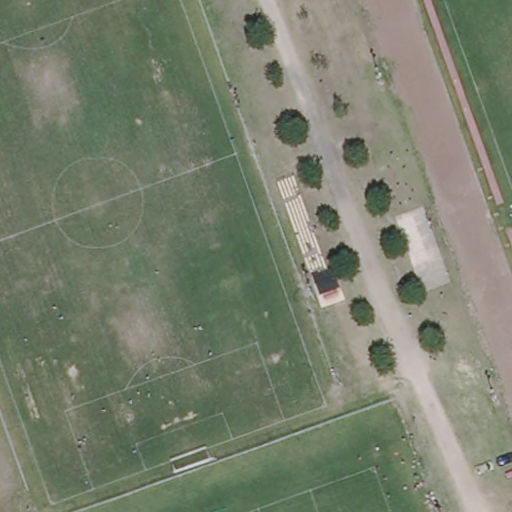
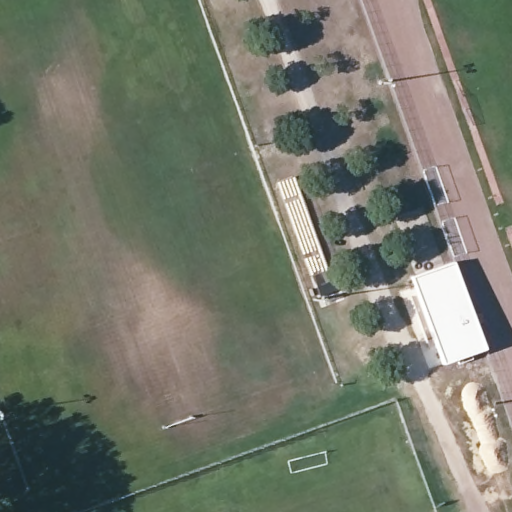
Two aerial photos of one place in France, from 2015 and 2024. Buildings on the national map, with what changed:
new [(414,278),(453,264),(482,348),(443,362),(414,278)]

